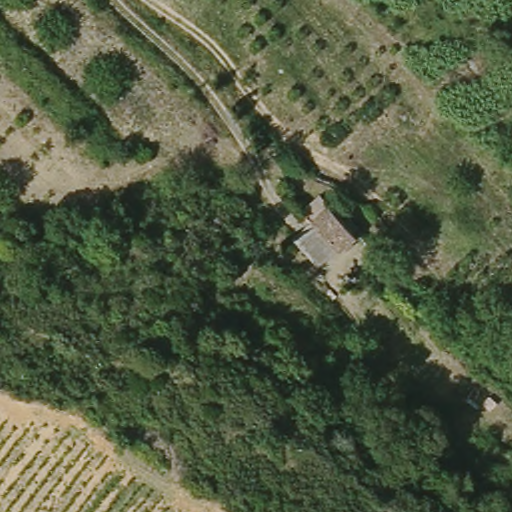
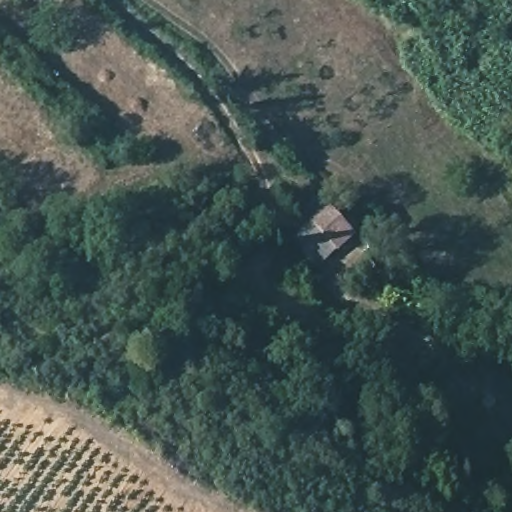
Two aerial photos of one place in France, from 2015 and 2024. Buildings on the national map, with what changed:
unchanged [(342,253),(312,223),(331,207),(362,237),(342,253)]

